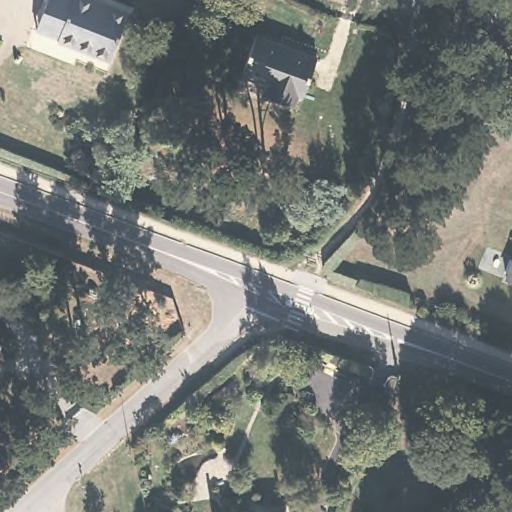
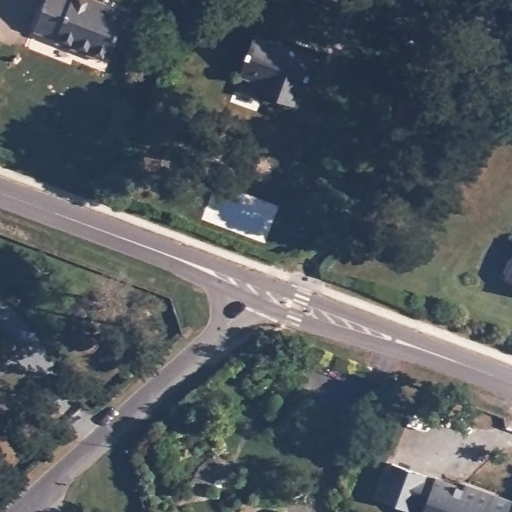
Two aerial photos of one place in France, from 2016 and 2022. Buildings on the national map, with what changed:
unchanged [(128,10),(109,59),(57,39),(58,37),(41,31),(34,28),(41,10),(46,0),(101,0),(128,10)]
unchanged [(320,56),(306,95),(302,94),(298,104),(268,93),(271,83),(245,73),(260,33),(320,56)]
unchanged [(509,278),(512,269),(512,279),(509,278)]
unchanged [(0,344),(0,338),(3,341),(0,344)]
new [(437,480),(438,477),(469,489),(472,484),(512,499),(512,501),(508,512),(424,512),(427,504),(416,500),(413,510),(379,499),(393,463),(425,474),(437,480)]

